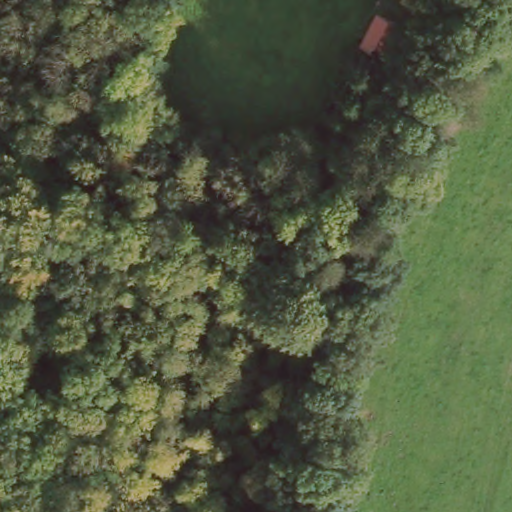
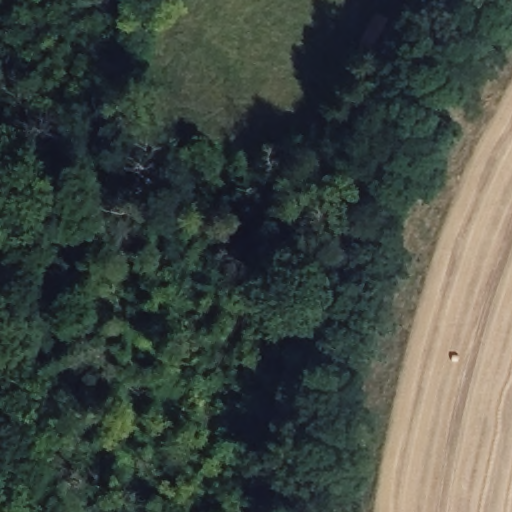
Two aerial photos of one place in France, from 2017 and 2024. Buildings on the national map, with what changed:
unchanged [(374,0),(377,0),(396,10),(380,40),(358,29),(374,0)]

